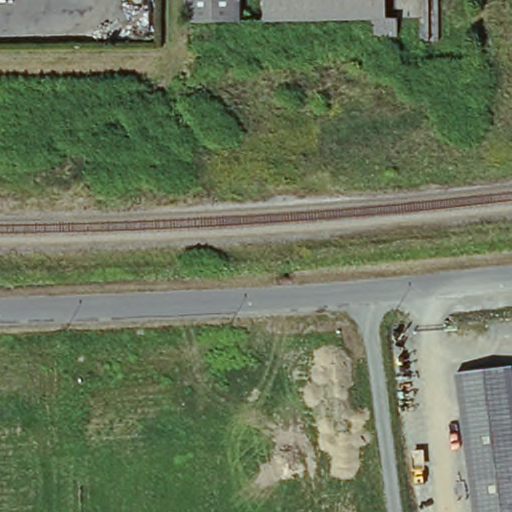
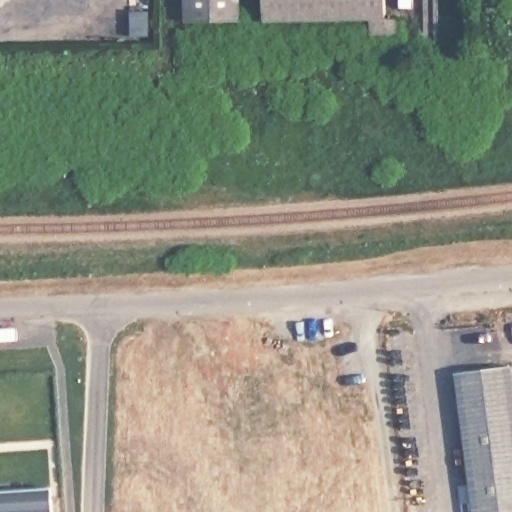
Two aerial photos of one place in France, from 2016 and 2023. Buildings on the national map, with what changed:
unchanged [(239,21),(186,21),(185,0),(239,0),(239,21)]
unchanged [(383,17),(361,20),(262,21),(262,0),(383,0),(383,17)]
unchanged [(474,512),(460,376),(512,370),(512,512),(474,512)]
new [(53,512),(0,512),(0,483),(50,480),(53,512)]

